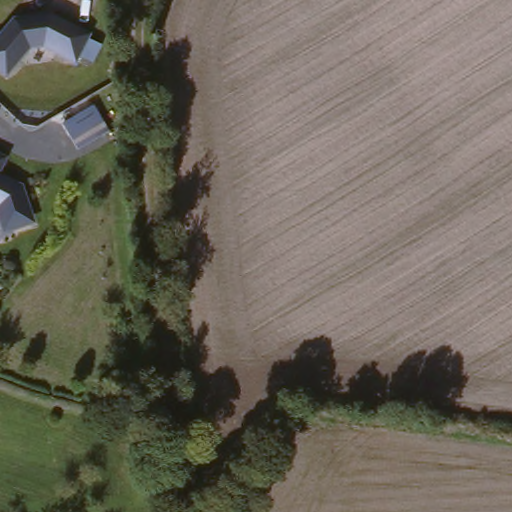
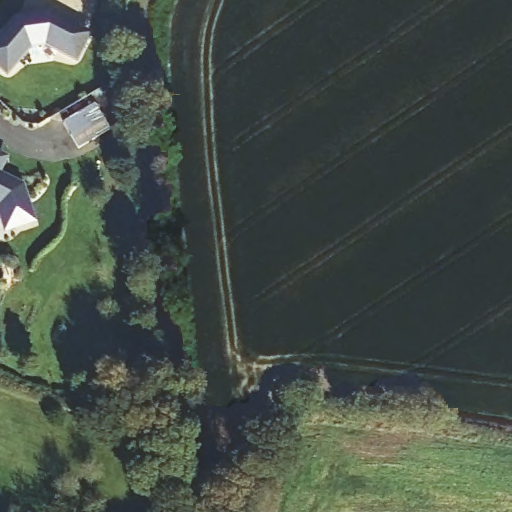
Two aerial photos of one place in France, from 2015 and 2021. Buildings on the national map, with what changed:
unchanged [(42,49),(24,54),(5,81),(0,77),(0,38),(13,23),(54,20),(82,36),(70,63),(42,49)]
unchanged [(75,152),(60,128),(89,112),(103,136),(75,152)]
unchanged [(2,164),(0,169),(0,163),(2,164)]

